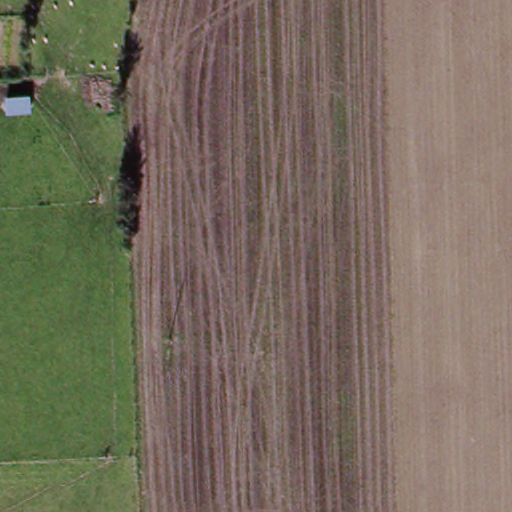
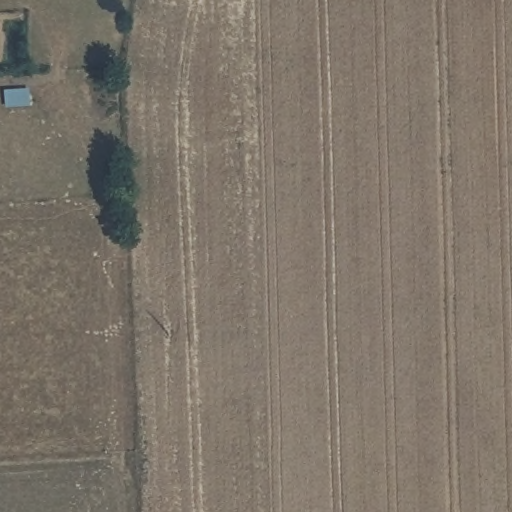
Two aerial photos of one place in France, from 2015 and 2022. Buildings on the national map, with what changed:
[]

